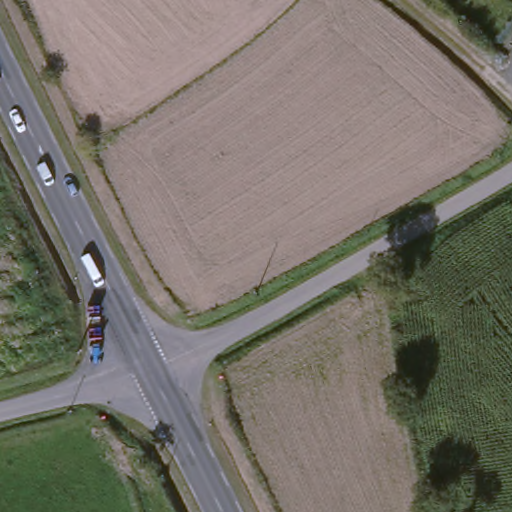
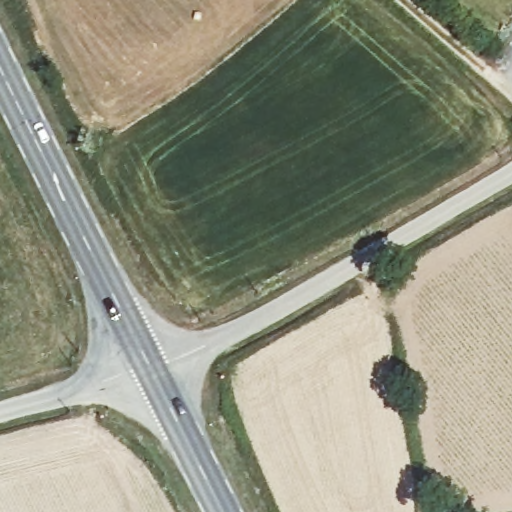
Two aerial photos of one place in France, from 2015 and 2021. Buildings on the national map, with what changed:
[]

